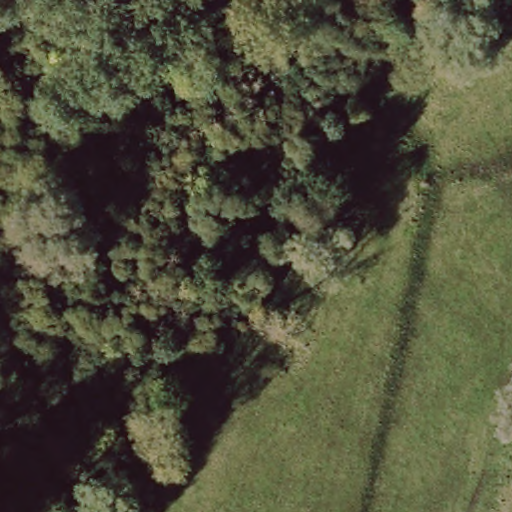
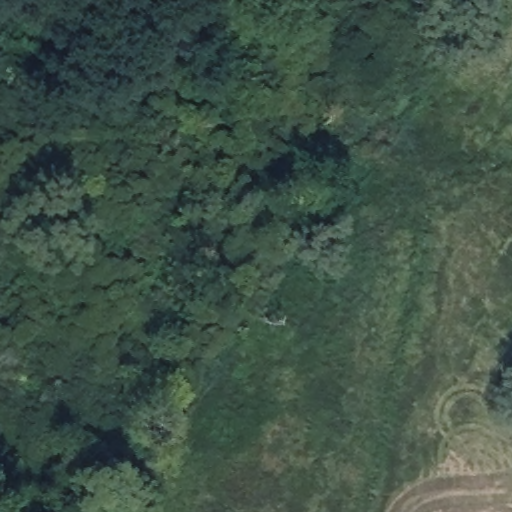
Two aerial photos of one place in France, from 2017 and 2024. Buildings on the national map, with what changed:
unchanged [(121,512),(100,512),(114,492),(128,502),(121,512)]

